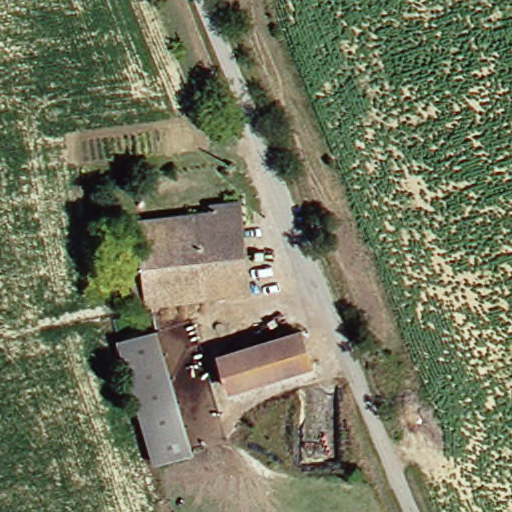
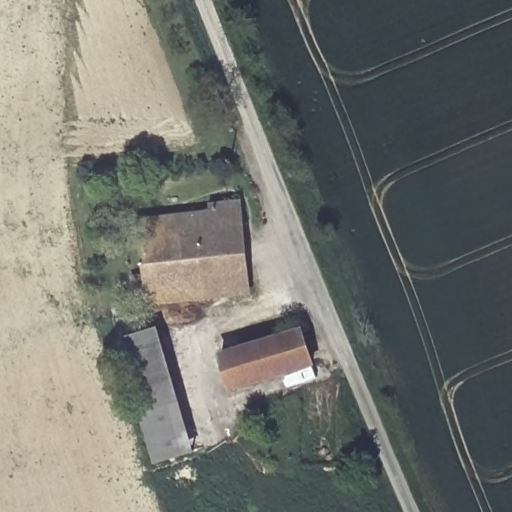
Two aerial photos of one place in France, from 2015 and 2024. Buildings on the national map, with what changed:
unchanged [(216,219),(215,208),(245,205),(249,235),(205,237),(213,299),(153,304),(145,228),(216,219)]
unchanged [(255,294),(213,299),(205,237),(249,235),(255,294)]
unchanged [(174,461),(169,461),(127,342),(157,332),(161,330),(164,340),(203,449),(174,461)]
unchanged [(322,369),(240,392),(230,356),(312,333),(322,369)]

